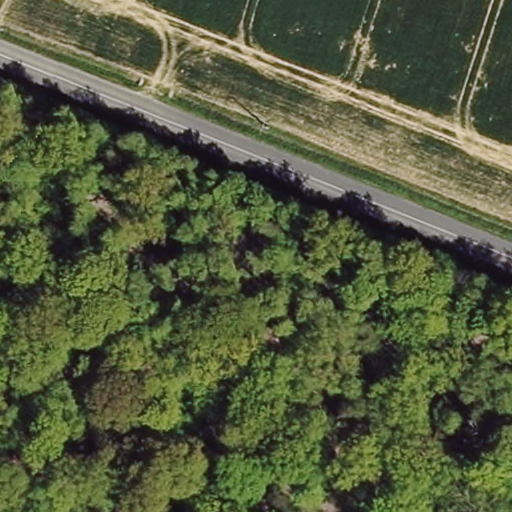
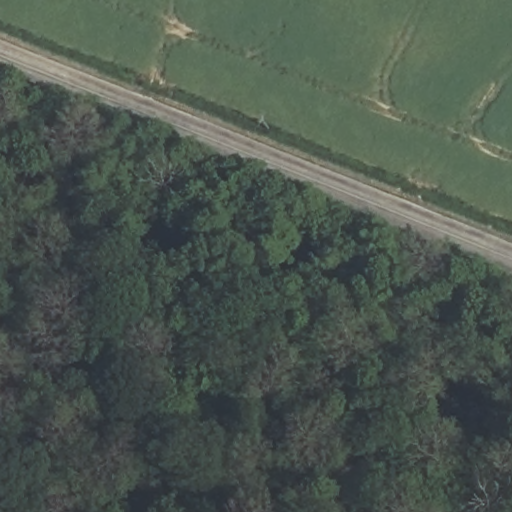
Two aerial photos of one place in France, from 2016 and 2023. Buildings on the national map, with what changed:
[]

